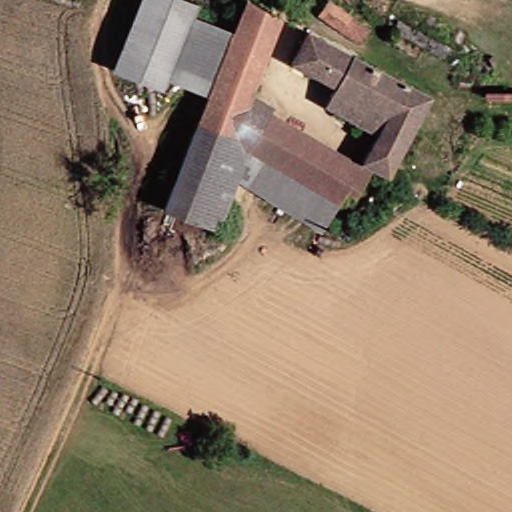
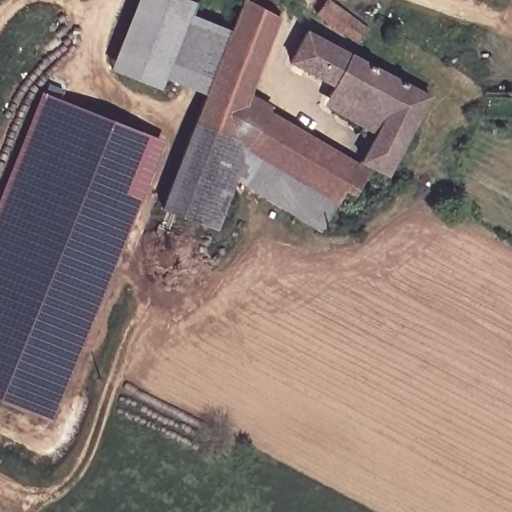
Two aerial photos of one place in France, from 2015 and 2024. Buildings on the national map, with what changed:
unchanged [(193,25),(190,39),(179,65),(167,90),(113,71),(141,0),(195,0),(200,2),(197,16),(193,25)]
unchanged [(372,29),(361,48),(315,15),(325,0),(331,0),(372,29)]
unchanged [(382,68),(412,84),(435,96),(391,178),(376,171),(360,197),(347,190),(323,230),(250,187),(263,164),(265,161),(252,152),(235,135),(201,123),(217,83),(179,65),(190,39),(193,25),(197,16),(230,27),(225,36),(232,38),(247,2),(288,16),(255,98),(279,109),(277,113),(362,166),(372,149),(378,138),(328,107),(338,91),(292,65),(310,32),(365,60),(382,68)]
new [(0,401),(0,200),(44,91),(167,142),(52,423),(0,401)]
unchanged [(248,160),(220,231),(166,207),(201,123),(235,135),(252,152),(248,160)]

